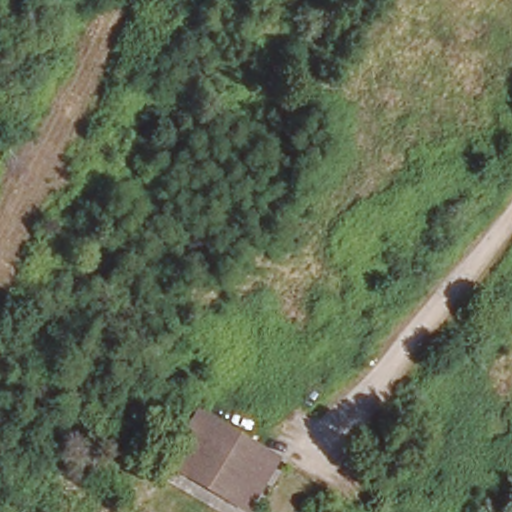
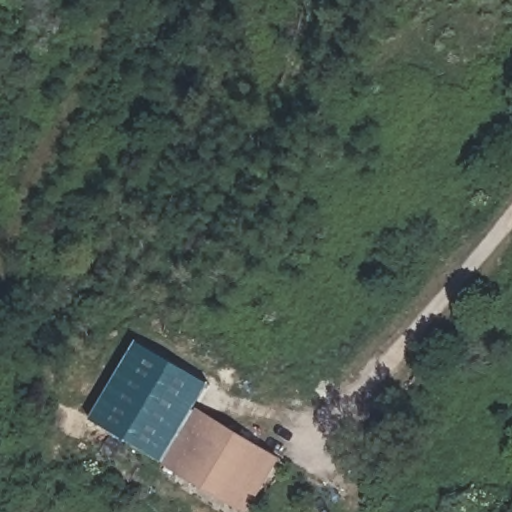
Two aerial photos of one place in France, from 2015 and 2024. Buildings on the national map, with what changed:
new [(137,340),(211,383),(190,412),(160,460),(90,419),(137,340)]
unchanged [(237,512),(229,512),(156,465),(190,412),(268,462),(237,512)]

